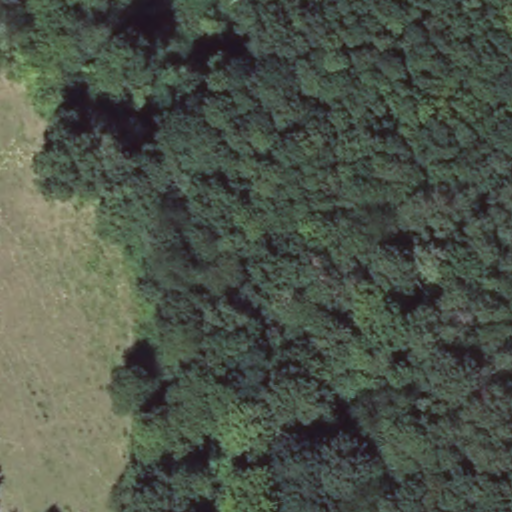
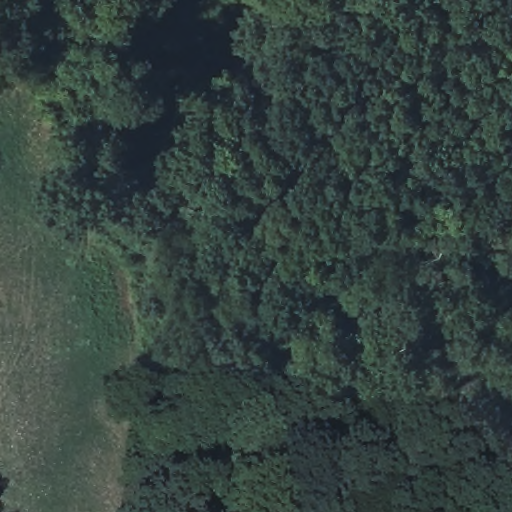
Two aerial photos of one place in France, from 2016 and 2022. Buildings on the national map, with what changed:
[]

